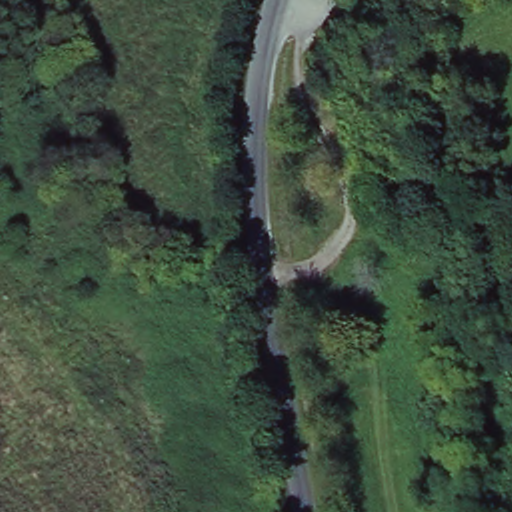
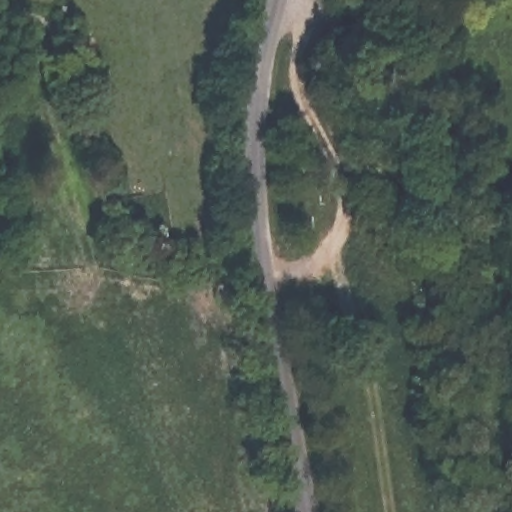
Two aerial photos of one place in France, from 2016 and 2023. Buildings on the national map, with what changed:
unchanged [(412,0),(412,11),(397,10),(397,5),(376,4),(376,0),(412,0)]

